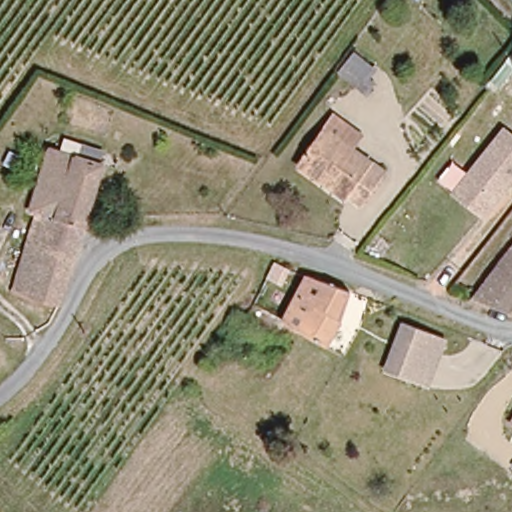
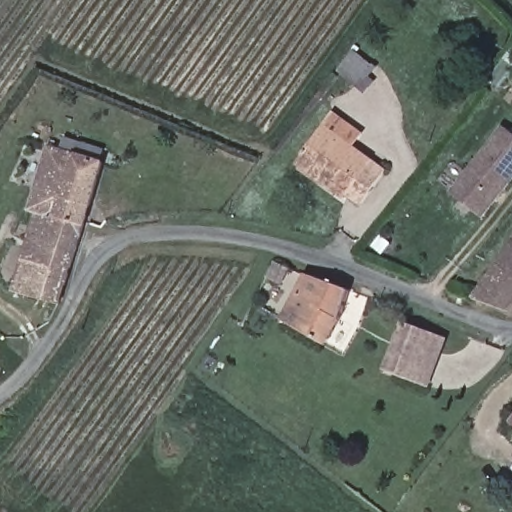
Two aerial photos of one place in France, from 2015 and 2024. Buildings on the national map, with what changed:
unchanged [(356,49),(383,67),(376,77),(380,81),(370,98),(337,73),(356,49)]
unchanged [(360,205),(346,196),(344,200),(296,165),(322,128),(332,115),(361,136),(351,149),(383,172),(360,205)]
unchanged [(505,127),(512,133),(512,186),(485,219),(452,192),(505,127)]
unchanged [(12,292),(36,214),(30,212),(35,196),(50,148),(102,165),(60,305),(12,292)]
unchanged [(512,315),(472,301),(512,247),(512,315)]
unchanged [(340,320),(325,346),(282,321),(306,276),(348,292),(340,320)]
unchanged [(430,387),(383,371),(401,322),(448,338),(430,387)]

